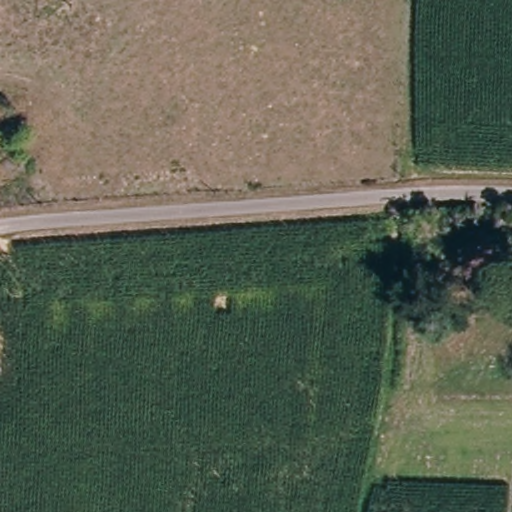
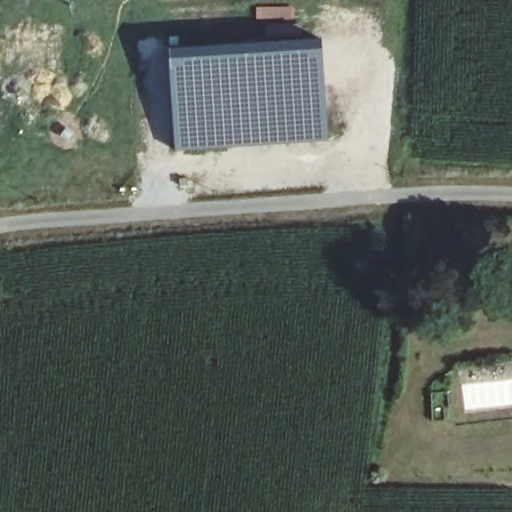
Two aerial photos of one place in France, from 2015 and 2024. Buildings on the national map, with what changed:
new [(293,6),(294,20),(256,20),(255,7),(293,6)]
new [(221,44),(222,46),(225,48),(284,44),(284,39),(323,39),(330,142),(175,151),(169,93),(168,45),(221,44)]

